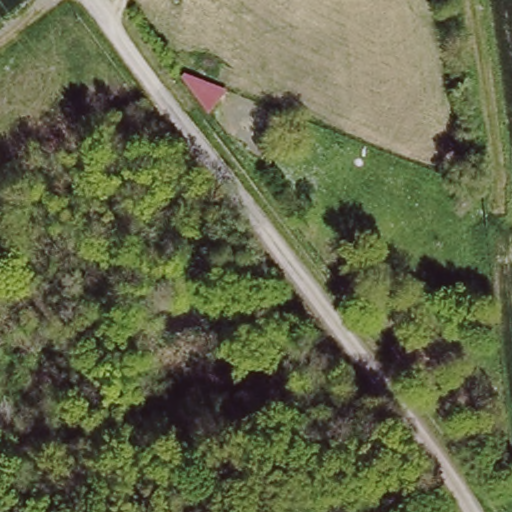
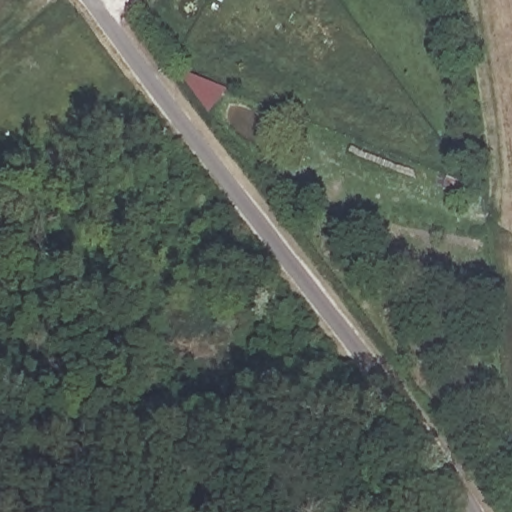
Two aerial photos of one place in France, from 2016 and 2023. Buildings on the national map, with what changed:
unchanged [(221,87),(211,116),(184,79),(221,87)]

